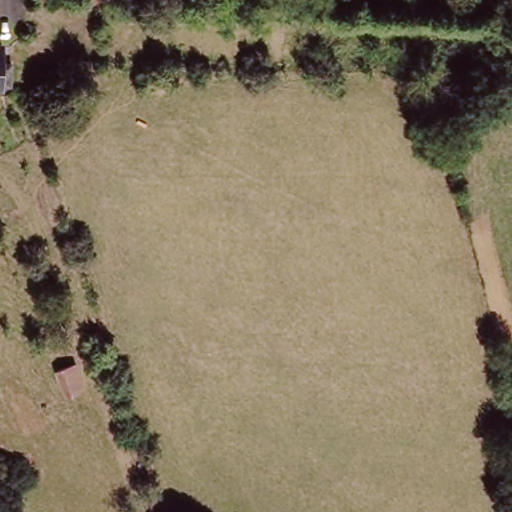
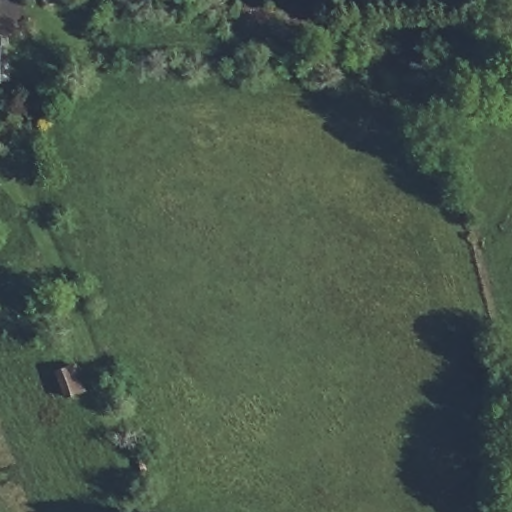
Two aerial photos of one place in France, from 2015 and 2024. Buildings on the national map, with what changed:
unchanged [(76,362),(87,392),(65,400),(55,370),(76,362)]

